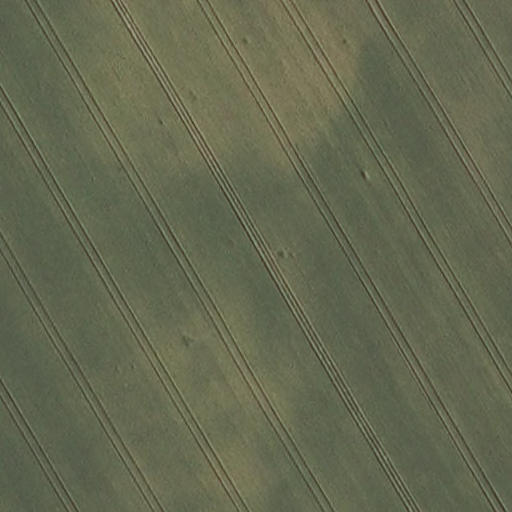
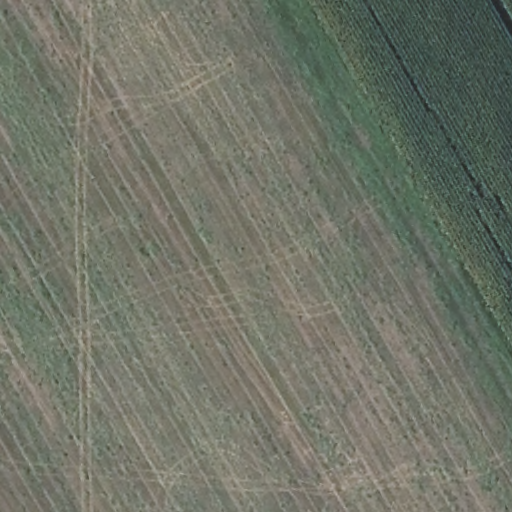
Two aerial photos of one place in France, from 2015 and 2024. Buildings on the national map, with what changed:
[]

